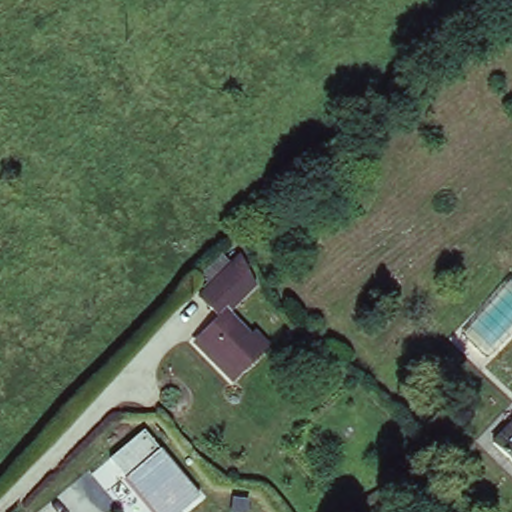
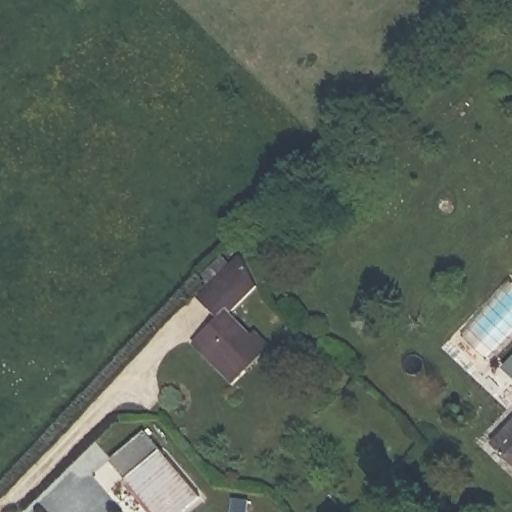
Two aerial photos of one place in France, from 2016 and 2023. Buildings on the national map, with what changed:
unchanged [(210,280),(227,299),(234,295),(240,303),(232,310),(218,323),(192,296),(204,284),(197,278),(220,253),(227,264),(210,280)]
unchanged [(237,254),(263,281),(240,303),(234,295),(227,299),(210,280),(237,254)]
unchanged [(232,310),(261,339),(266,334),(275,346),(232,386),(195,343),(232,310)]
unchanged [(490,442),(512,421),(512,465),(490,442)]
unchanged [(145,433),(197,496),(179,512),(151,512),(107,460),(145,433)]

